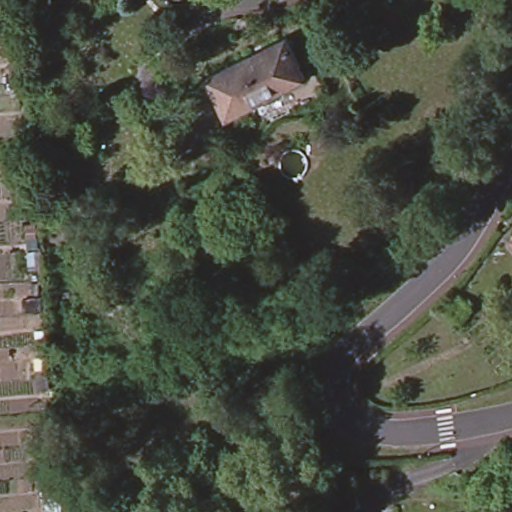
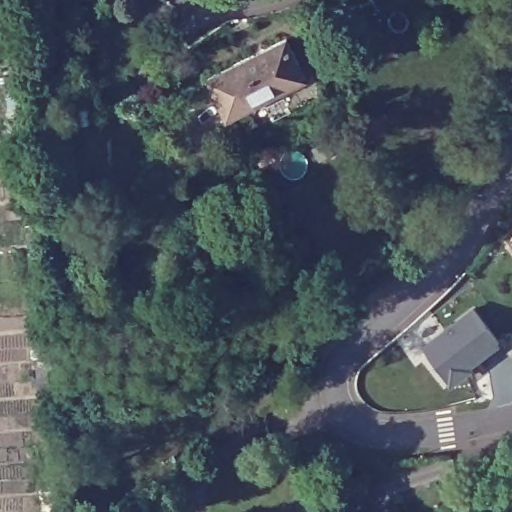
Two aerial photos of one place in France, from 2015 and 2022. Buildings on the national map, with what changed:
unchanged [(288,41),(305,78),(226,114),(208,76),(288,41)]
new [(422,347),(475,307),(501,342),(471,366),(473,369),(451,385),(422,347)]
unchanged [(358,507),(345,512),(328,512),(323,498),(352,488),(358,507)]

